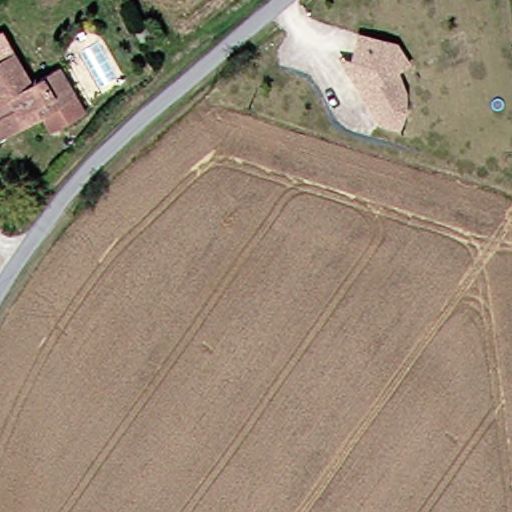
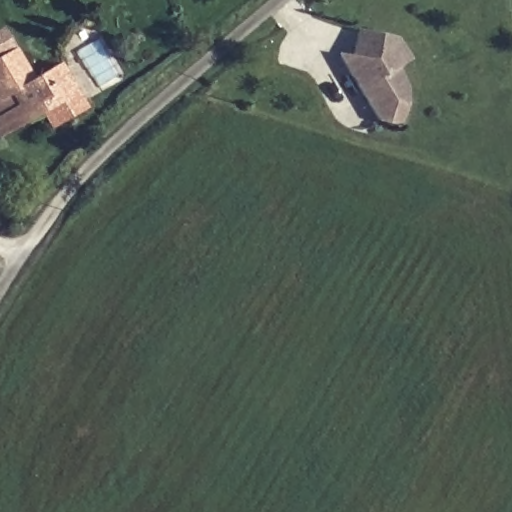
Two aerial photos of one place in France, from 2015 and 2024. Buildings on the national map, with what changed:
unchanged [(400,36),(412,59),(400,66),(409,88),(402,124),(376,116),(347,68),(342,50),(352,49),(359,25),(400,36)]
unchanged [(40,85),(68,72),(89,109),(59,128),(51,115),(7,141),(0,131),(0,123),(7,119),(0,103),(0,36),(12,30),(40,85)]

